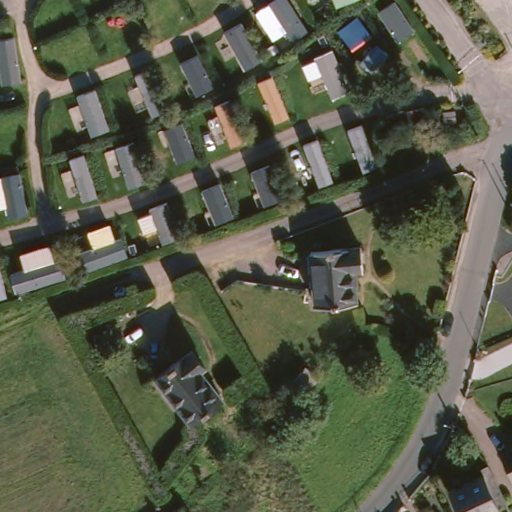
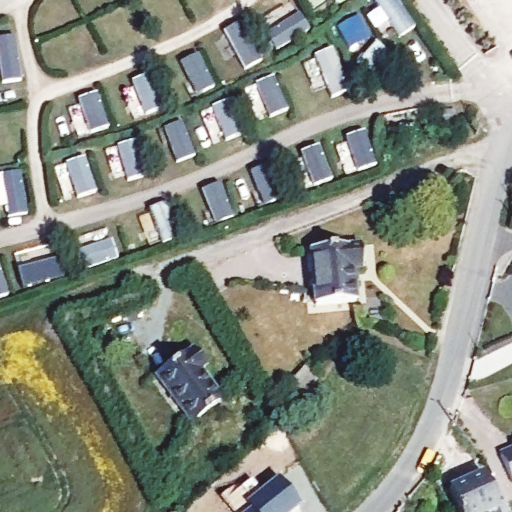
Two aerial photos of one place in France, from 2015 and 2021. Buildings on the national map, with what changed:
new [(338,6),(336,0),(354,0),(338,6)]
unchanged [(355,270),(359,304),(316,308),(311,255),(360,247),(361,269),(355,270)]
unchanged [(199,380),(221,410),(190,433),(155,383),(190,357),(205,376),(199,380)]
unchanged [(506,455),(505,452),(512,448),(512,488),(497,460),(506,455)]
new [(280,475),(300,501),(286,512),(244,512),(252,506),(247,500),(280,475)]
unchanged [(495,480),(506,505),(497,510),(494,512),(456,512),(447,493),(482,478),(485,485),(495,480)]

